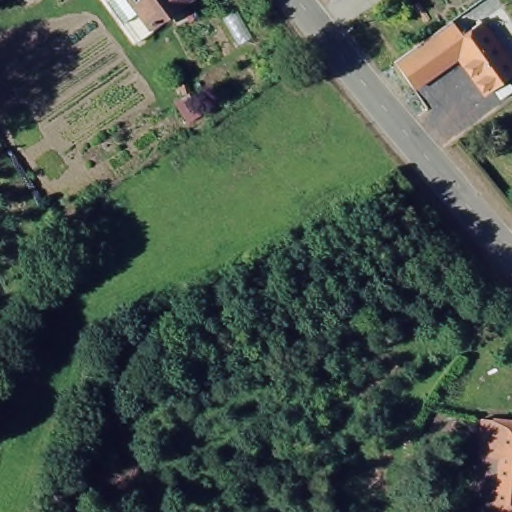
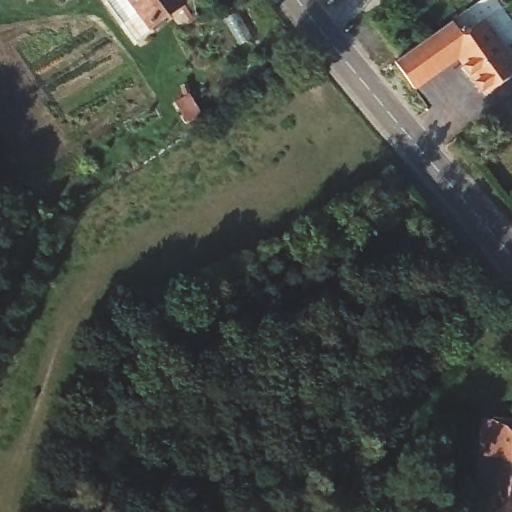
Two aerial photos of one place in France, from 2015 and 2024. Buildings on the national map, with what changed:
unchanged [(131,0),(198,0),(152,32),(131,0)]
unchanged [(321,0),(331,0),(325,5),(321,0)]
unchanged [(394,63),(452,20),(463,34),(485,17),(512,54),(512,77),(485,97),(457,62),(416,92),(394,63)]
unchanged [(493,423),(503,425),(512,426),(512,512),(478,512),(493,423)]

